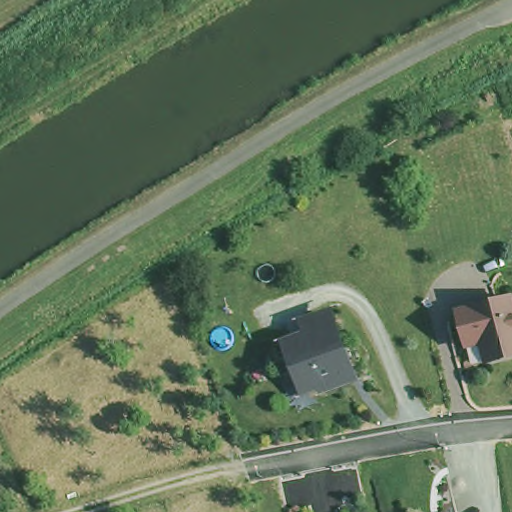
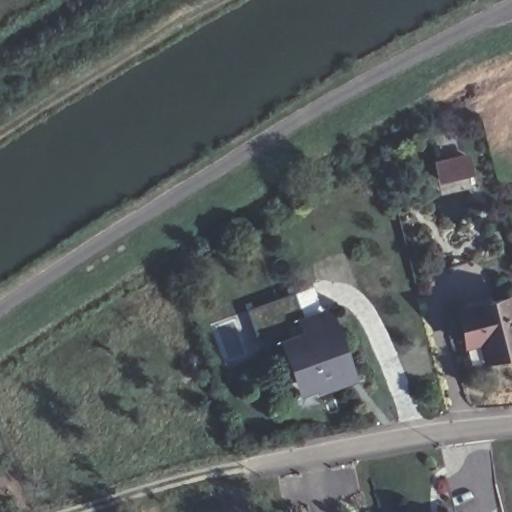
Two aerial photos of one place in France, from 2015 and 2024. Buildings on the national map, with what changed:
new [(468,152),(475,179),(437,186),(431,160),(468,152)]
unchanged [(512,298),(512,354),(489,360),(476,363),(475,364),(461,311),(465,310),(512,298)]
unchanged [(334,386),(318,391),(303,349),(324,341),(318,326),(339,318),(363,381),(336,391),(334,386)]

